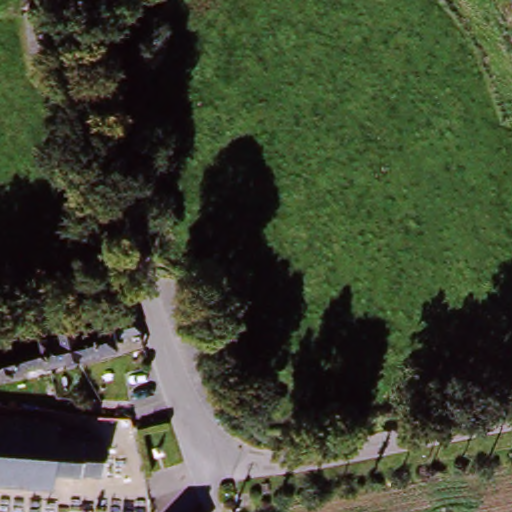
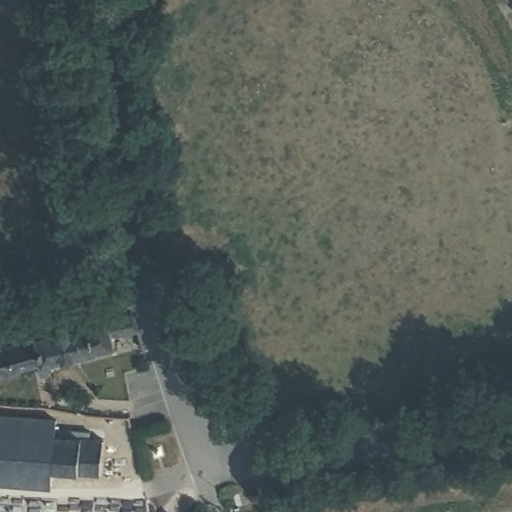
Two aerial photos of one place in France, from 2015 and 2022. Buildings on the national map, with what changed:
unchanged [(27,17),(55,15),(60,77),(33,80),(27,17)]
unchanged [(108,340),(111,352),(0,382),(0,347),(38,337),(36,330),(56,325),(59,332),(123,314),(129,334),(108,340)]
unchanged [(51,488),(0,484),(0,414),(58,419),(58,428),(91,432),(90,440),(103,440),(101,459),(99,476),(53,475),(51,488)]
unchanged [(166,442),(169,458),(153,462),(151,445),(166,442)]

